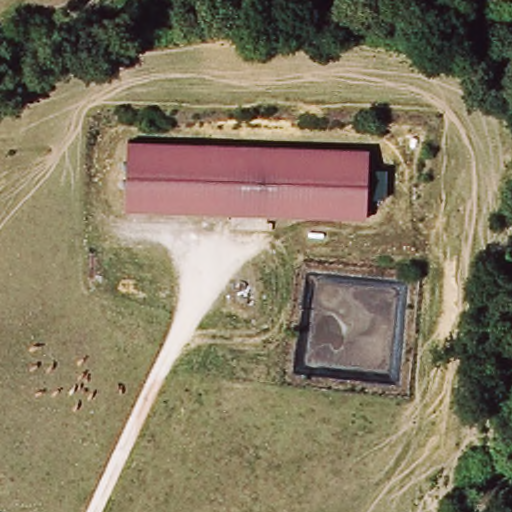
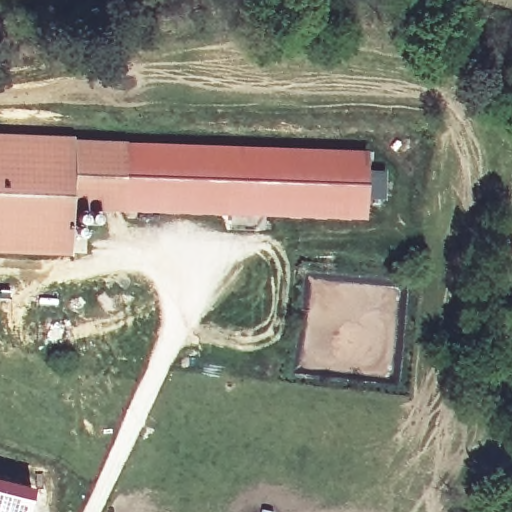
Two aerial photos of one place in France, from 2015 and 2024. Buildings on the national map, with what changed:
new [(128,147),(128,211),(73,209),(72,256),(0,253),(0,134),(128,137),(128,147)]
unchanged [(128,147),(365,146),(365,215),(128,215),(128,147)]

